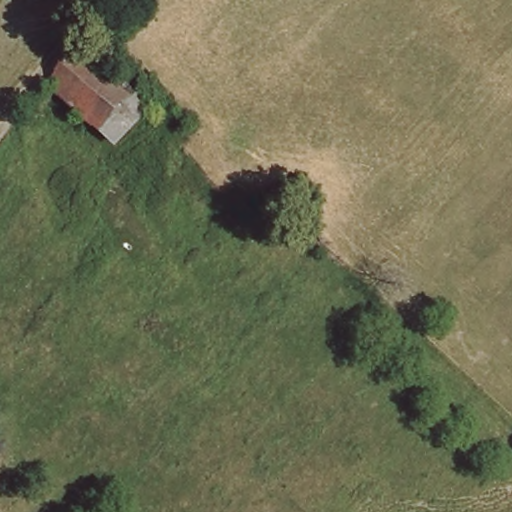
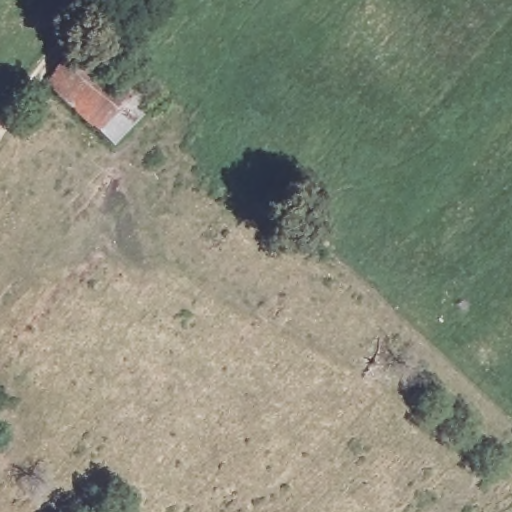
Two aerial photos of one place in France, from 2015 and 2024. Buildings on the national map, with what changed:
unchanged [(78,70),(119,105),(93,130),(53,96),(78,70)]

